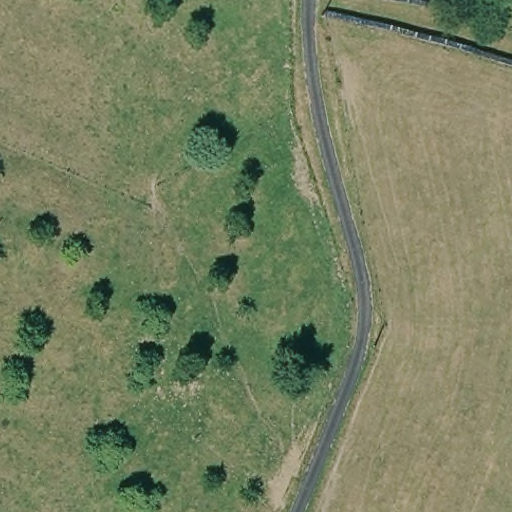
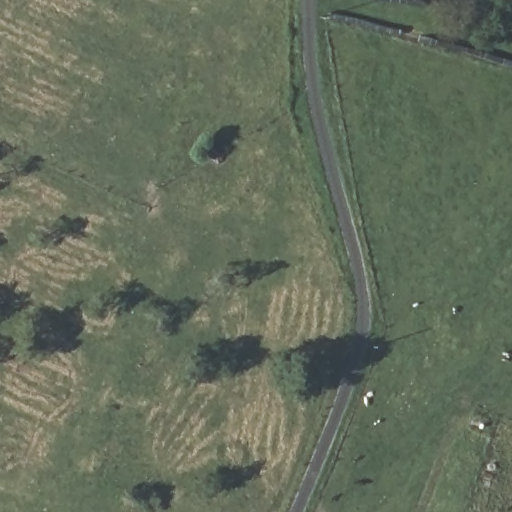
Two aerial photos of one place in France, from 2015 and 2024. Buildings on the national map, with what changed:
[]

